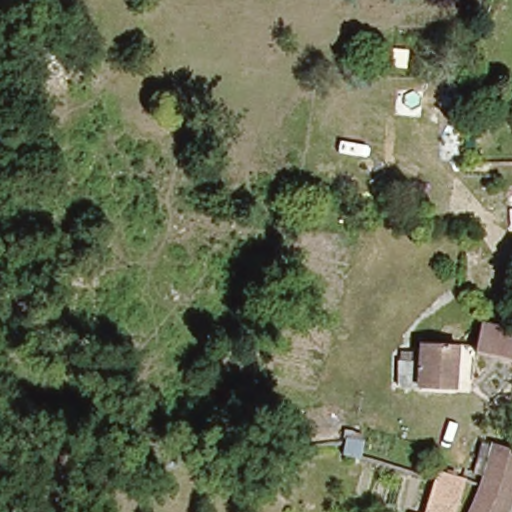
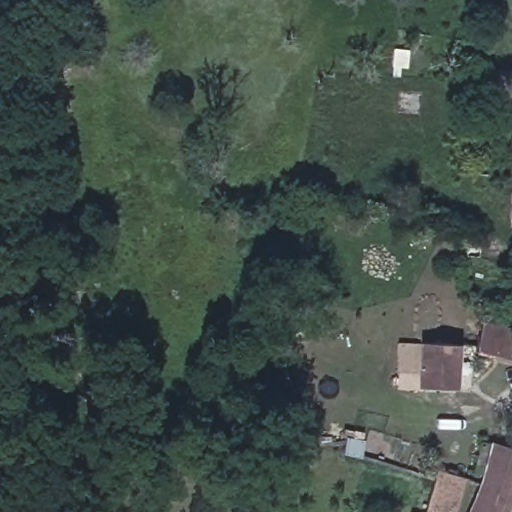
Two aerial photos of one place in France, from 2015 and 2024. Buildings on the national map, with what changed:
unchanged [(478,260),(467,259),(467,243),(479,243),(478,260)]
unchanged [(480,321),(512,328),(512,358),(476,351),(480,321)]
unchanged [(456,386),(398,383),(398,359),(418,359),(420,337),(457,341),(456,386)]
unchanged [(346,460),(347,447),(348,444),(366,447),(363,462),(346,460)]
unchanged [(487,447),(512,452),(512,493),(504,512),(469,512),(480,478),(487,447)]
unchanged [(434,472),(463,478),(457,512),(426,512),(433,477),(434,472)]

